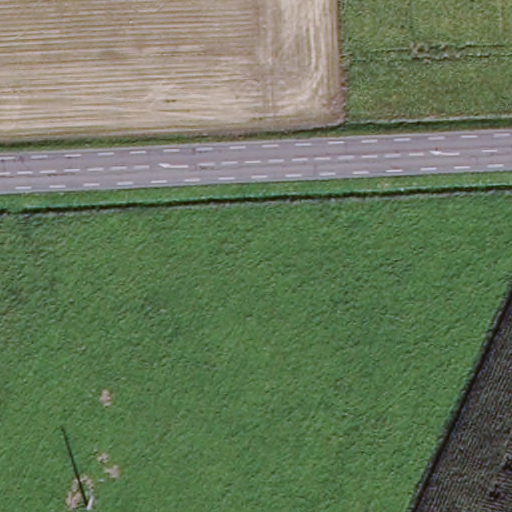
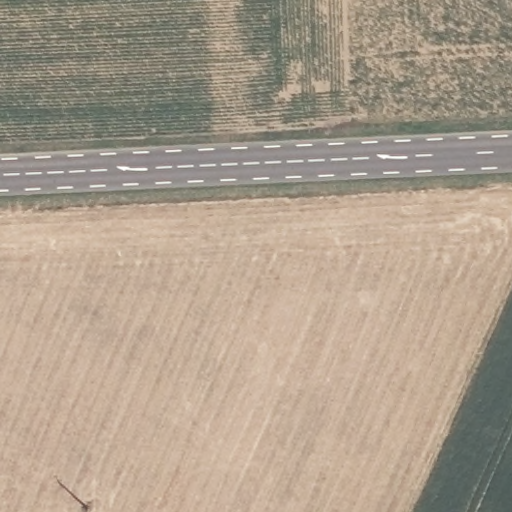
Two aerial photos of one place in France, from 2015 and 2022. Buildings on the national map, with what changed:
[]

